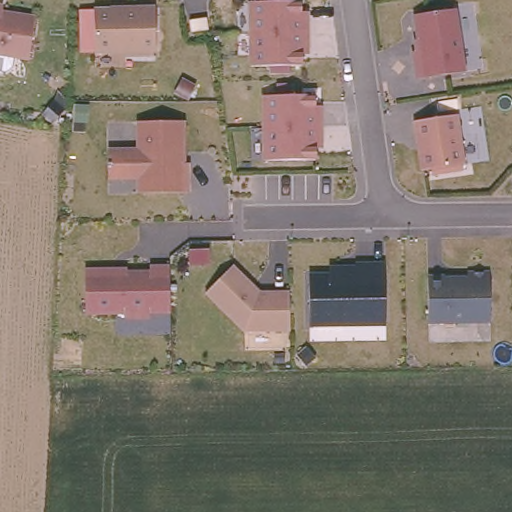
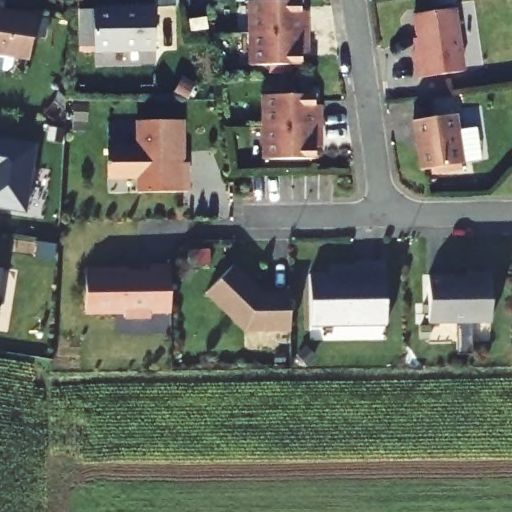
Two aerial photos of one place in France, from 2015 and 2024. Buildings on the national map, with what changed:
unchanged [(248,1),(299,0),(300,17),(306,17),(306,32),(288,32),(248,33),(248,1)]
unchanged [(94,50),(92,7),(119,5),(119,4),(154,3),(156,47),(94,50)]
unchanged [(34,11),(28,55),(0,51),(0,7),(34,11)]
unchanged [(455,7),(464,70),(418,77),(414,50),(421,49),(415,13),(455,7)]
unchanged [(288,32),(306,32),(306,47),(300,47),(300,64),(249,65),(248,33),(288,32)]
unchanged [(262,94),(313,93),(314,110),(320,110),(320,125),(262,126),(262,94)]
unchanged [(458,113),(465,163),(421,169),(414,119),(458,113)]
unchanged [(182,156),(178,157),(178,162),(186,162),(187,191),(137,192),(136,177),(106,177),(106,148),(136,148),(136,120),(182,119),(182,156)]
unchanged [(320,125),(320,140),(314,140),(314,157),(263,158),(262,126),(320,125)]
new [(26,213),(0,209),(0,139),(36,144),(26,213)]
unchanged [(331,270),(332,274),(340,274),(340,270),(355,270),(355,260),(385,259),(386,320),(310,322),(309,271),(331,270)]
unchanged [(149,307),(149,312),(123,313),(123,308),(85,309),(84,266),(112,265),(113,268),(149,267),(149,262),(168,262),(169,307),(149,307)]
unchanged [(289,303),(290,327),(245,328),(205,290),(231,263),(252,282),(250,284),(256,290),(289,289),(289,303)]
unchanged [(429,271),(445,271),(445,273),(469,273),(469,268),(491,267),(492,317),(430,318),(429,271)]
new [(0,287),(0,269),(3,269),(0,287)]

